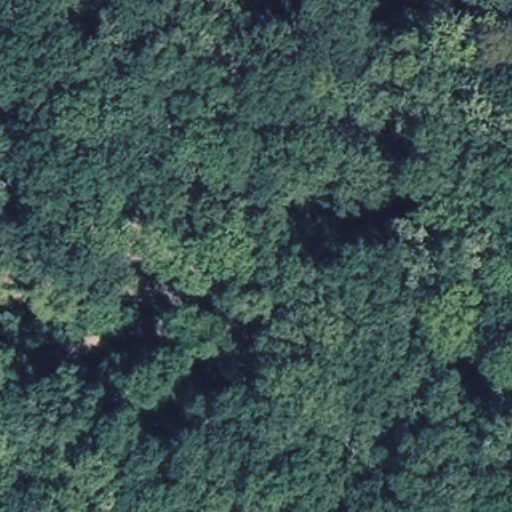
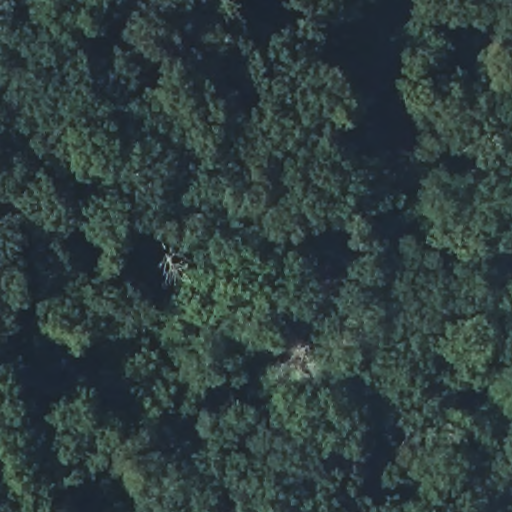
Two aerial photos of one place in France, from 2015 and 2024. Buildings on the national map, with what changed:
[]

